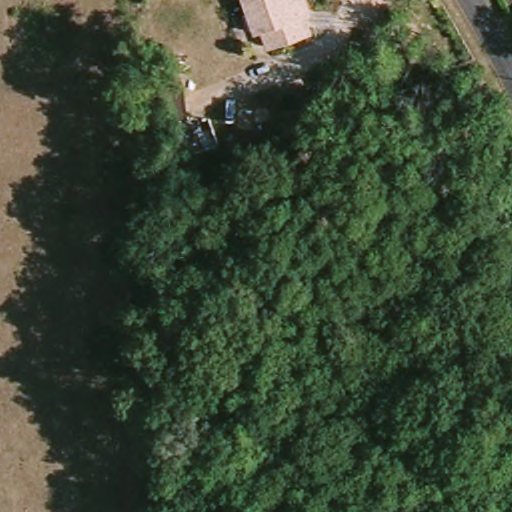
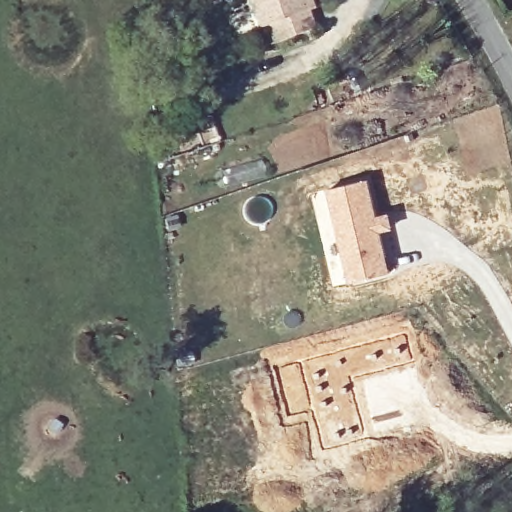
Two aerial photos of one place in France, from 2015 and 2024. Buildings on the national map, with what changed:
unchanged [(316,30),(277,47),(269,29),(263,32),(249,0),(310,0),(314,10),(308,12),(316,30)]
unchanged [(202,110),(187,113),(182,82),(196,80),(202,110)]
new [(369,178),(379,213),(390,211),(395,229),(383,232),(392,270),(348,282),(326,190),(369,178)]
new [(326,190),(348,282),(333,286),(310,195),(326,190)]

